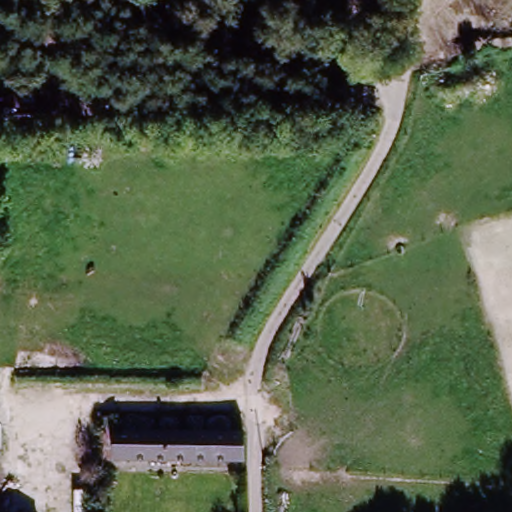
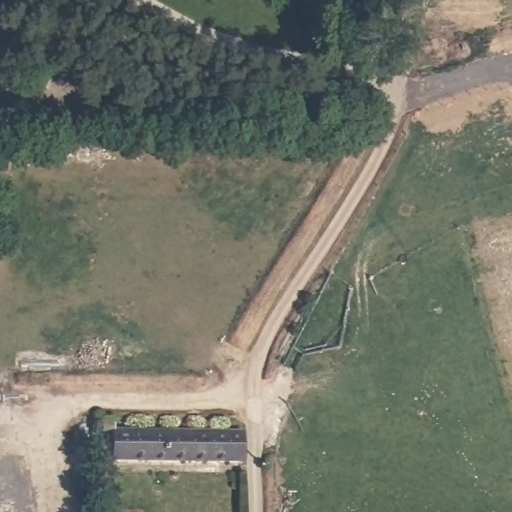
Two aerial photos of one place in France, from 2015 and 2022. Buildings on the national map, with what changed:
unchanged [(102,461),(101,425),(111,425),(111,434),(247,432),(247,459),(112,461),(102,461)]

